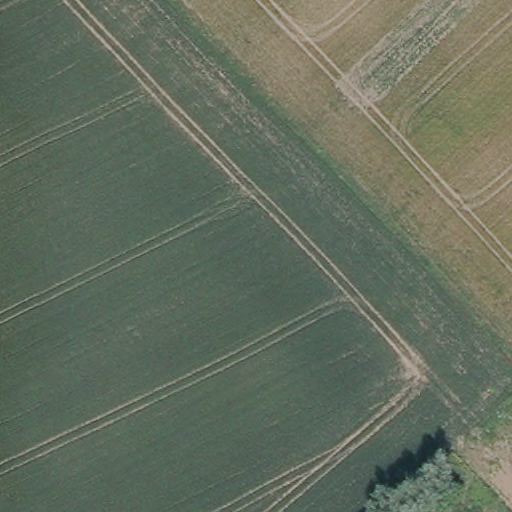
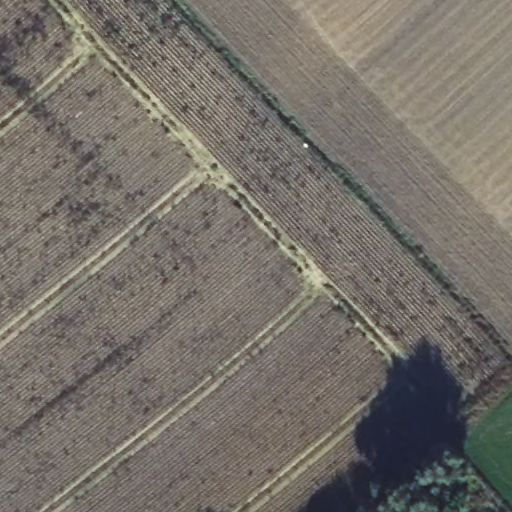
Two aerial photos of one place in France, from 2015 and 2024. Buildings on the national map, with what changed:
[]

